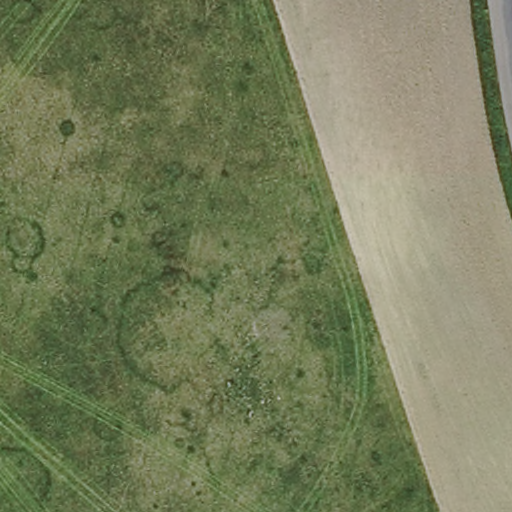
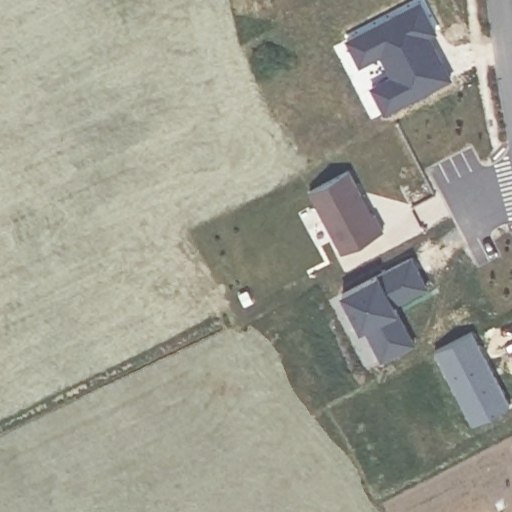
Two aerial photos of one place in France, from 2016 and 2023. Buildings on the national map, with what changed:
new [(440,27),(434,30),(441,46),(455,74),(388,107),(375,82),(396,71),(385,50),(364,60),(350,35),(419,0),(425,0),(440,27)]
new [(344,255),(310,193),(352,171),(374,216),(377,215),(385,231),(344,255)]
new [(411,343),(385,356),(369,323),(365,325),(347,289),(415,254),(430,283),(397,300),(400,306),(417,340),(411,343)]
new [(249,291),(254,302),(246,306),(240,295),(249,291)]
new [(472,333),(510,407),(473,426),(435,352),(472,333)]

